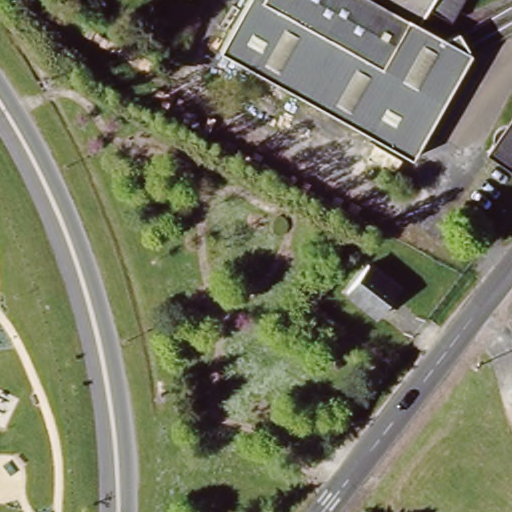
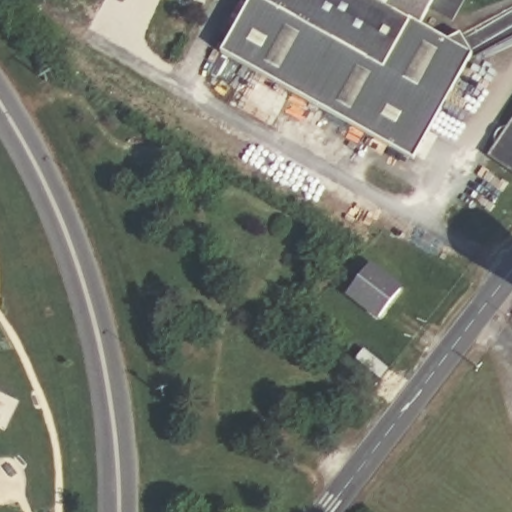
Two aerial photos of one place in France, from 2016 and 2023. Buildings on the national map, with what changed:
unchanged [(440,4),(427,21),(458,36),(474,26),(480,49),(423,150),(232,49),(259,0),(473,0),(464,15),(440,4)]
unchanged [(500,153),(512,134),(512,162),(500,153)]
unchanged [(376,321),(340,294),(370,258),(400,286),(376,321)]

